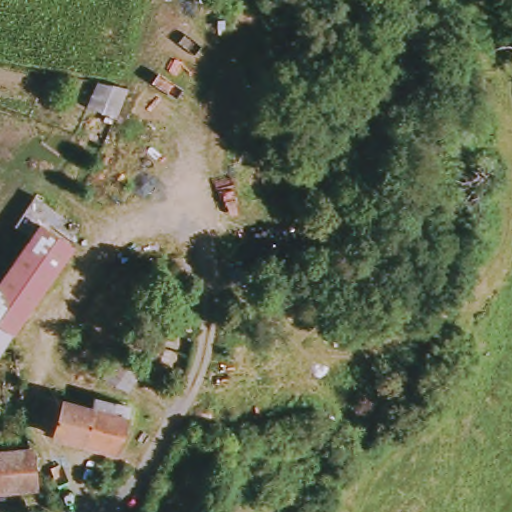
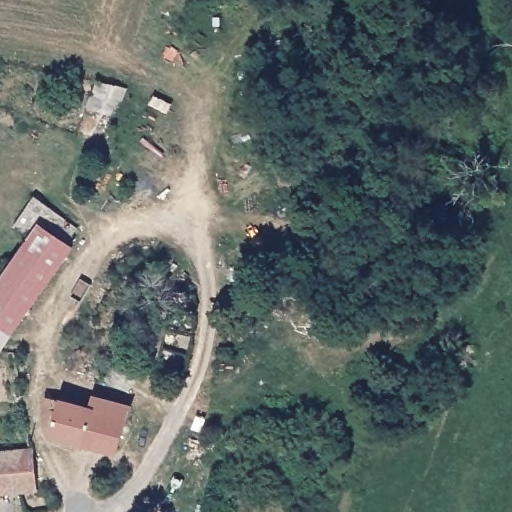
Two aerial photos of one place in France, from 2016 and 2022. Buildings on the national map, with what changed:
unchanged [(0,324),(0,286),(33,237),(18,224),(38,197),(49,206),(80,229),(71,244),(76,247),(16,335),(0,324)]
unchanged [(0,324),(16,335),(5,350),(4,350),(0,356),(0,324)]
unchanged [(102,406),(136,417),(134,425),(125,459),(60,441),(61,432),(54,426),(58,403),(100,416),(102,406)]
unchanged [(42,492),(0,496),(0,454),(38,453),(42,492)]

